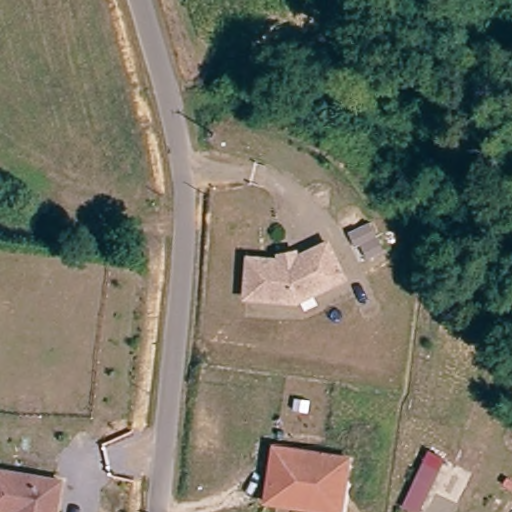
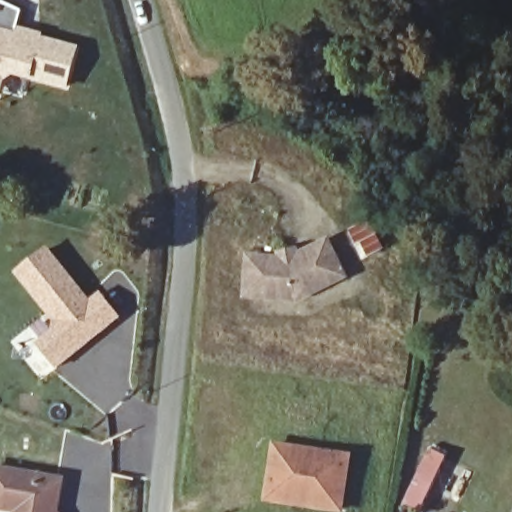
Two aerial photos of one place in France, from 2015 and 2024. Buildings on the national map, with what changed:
new [(19,28),(45,33),(44,37),(81,45),(69,91),(15,76),(6,82),(0,104),(0,1),(23,11),(19,28)]
unchanged [(354,277),(306,302),(256,299),(258,259),(291,261),(289,255),(304,252),(305,258),(336,242),(354,277)]
new [(91,300),(101,293),(122,319),(56,372),(34,346),(53,331),(54,323),(15,274),(49,248),(91,300)]
unchanged [(268,498),(271,469),(273,446),(285,447),(347,452),(344,489),(342,507),(268,501),(268,498)]
unchanged [(438,479),(425,507),(410,499),(418,481),(430,456),(446,463),(438,479)]
unchanged [(0,508),(0,468),(62,480),(56,512),(21,512),(0,508)]

